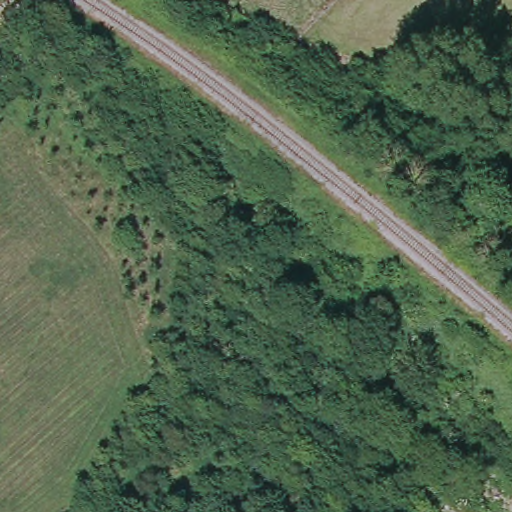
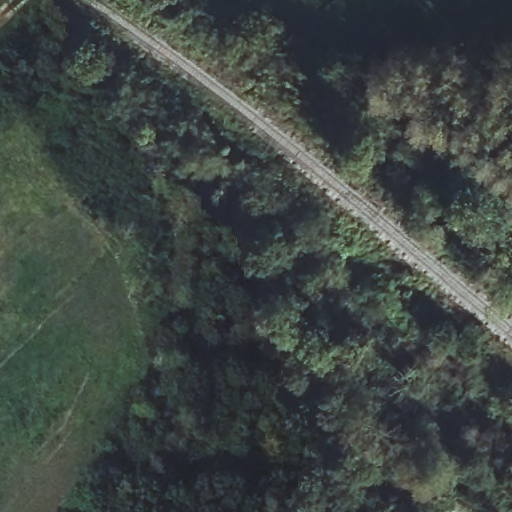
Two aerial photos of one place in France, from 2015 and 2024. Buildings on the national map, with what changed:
unchanged [(431,483),(484,512),(428,512),(418,506),(431,483)]

